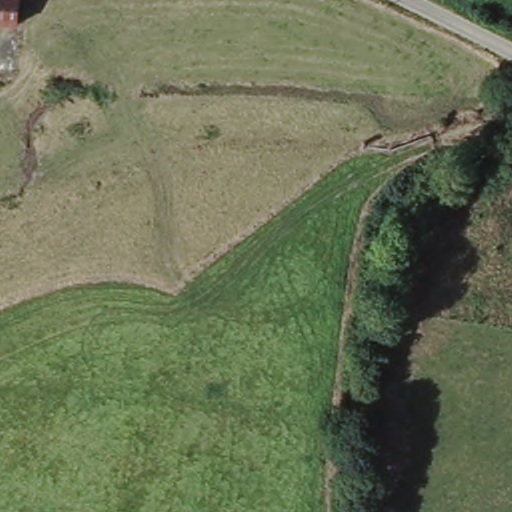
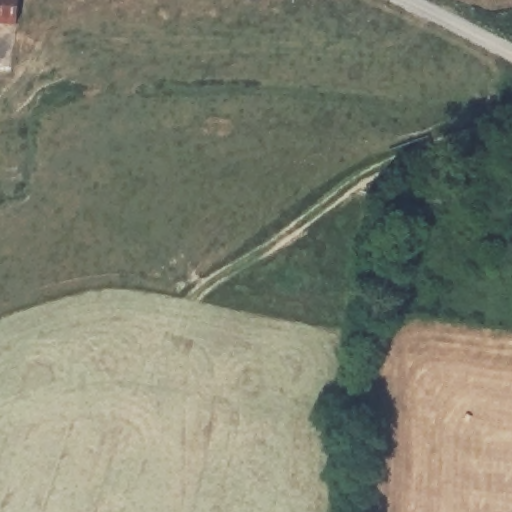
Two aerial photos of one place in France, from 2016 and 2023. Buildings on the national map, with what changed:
unchanged [(15,26),(0,25),(0,0),(18,0),(15,26)]

